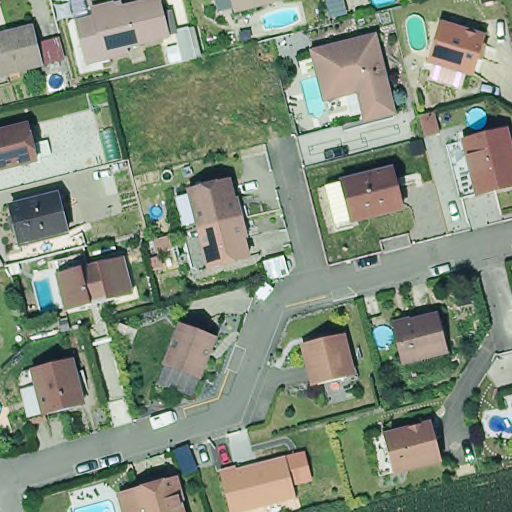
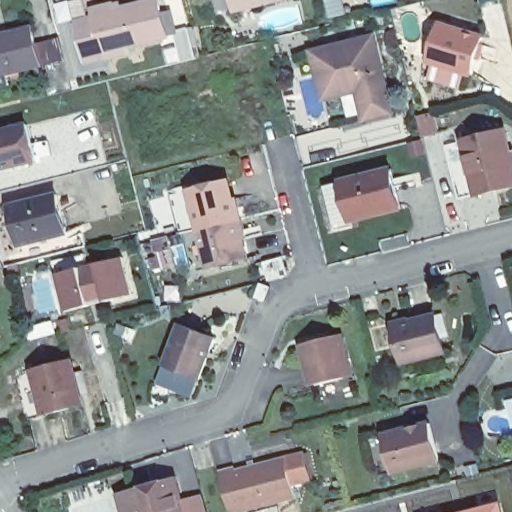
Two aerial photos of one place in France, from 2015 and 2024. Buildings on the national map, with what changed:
unchanged [(96,12),(94,3),(105,0),(109,0),(110,5),(130,0),(162,0),(169,30),(128,41),(129,47),(106,52),(88,57),(78,16),(96,12)]
unchanged [(241,0),(286,0),(243,10),(241,0)]
unchanged [(425,74),(430,57),(425,55),(436,19),(480,32),(469,69),(463,67),(457,83),(425,74)]
unchanged [(33,42),(52,37),(58,59),(38,64),(0,73),(0,33),(28,26),(33,42)]
unchanged [(178,30),(194,26),(201,55),(186,59),(178,30)]
unchanged [(370,32),(389,107),(361,114),(354,85),(321,94),(309,47),(370,32)]
unchanged [(0,164),(0,125),(23,119),(32,156),(0,164)]
unchanged [(470,197),(465,154),(449,160),(446,137),(506,124),(512,164),(512,188),(470,197)]
unchanged [(326,181),(342,177),(394,164),(403,202),(352,216),(336,220),(326,181)]
unchanged [(191,184),(228,175),(238,214),(201,224),(191,184)]
unchanged [(58,196),(68,235),(23,245),(13,207),(58,196)]
unchanged [(238,214),(248,253),(211,263),(201,224),(238,214)]
unchanged [(123,298),(98,305),(96,298),(80,302),(81,308),(56,315),(48,278),(44,266),(75,258),(78,271),(114,262),(123,298)]
unchanged [(432,315),(441,351),(399,362),(391,325),(432,315)]
unchanged [(176,318),(211,332),(196,373),(161,360),(176,318)]
unchanged [(333,335),(343,375),(304,385),(294,345),(333,335)]
unchanged [(22,368),(39,364),(77,354),(88,400),(51,410),(34,414),(22,368)]
unchanged [(427,417),(436,455),(389,467),(380,429),(427,417)]
unchanged [(236,461),(237,464),(286,452),(297,493),(232,510),(221,465),(236,461)]
unchanged [(120,495),(135,491),(174,480),(183,512),(125,512),(120,495)]
new [(502,501),(505,512),(457,512),(502,501)]

